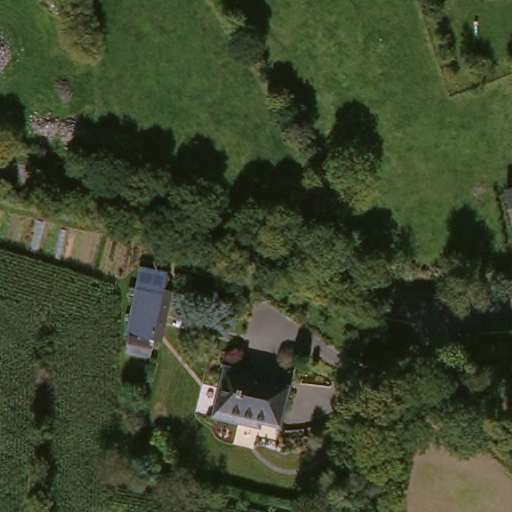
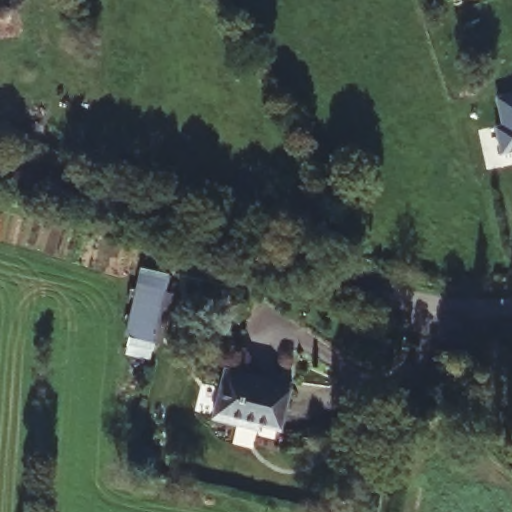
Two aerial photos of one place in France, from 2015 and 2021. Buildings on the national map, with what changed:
new [(510,153),(510,155),(501,156),(496,127),(502,125),(497,97),(512,94),(512,153),(510,153)]
unchanged [(141,287),(172,293),(165,343),(160,342),(133,338),(141,287)]
unchanged [(286,387),(281,428),(280,430),(253,425),(252,431),(217,425),(224,372),(246,375),(246,380),(286,387)]

